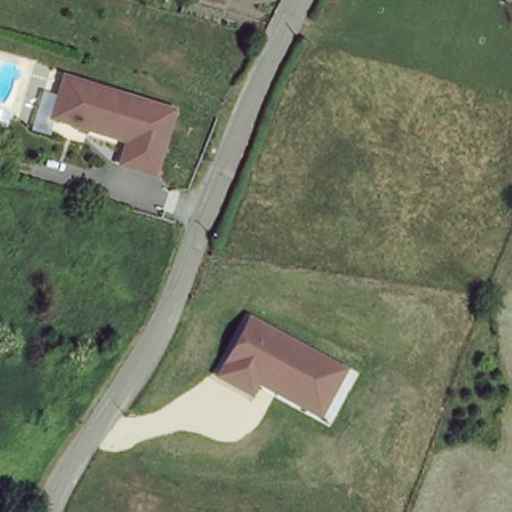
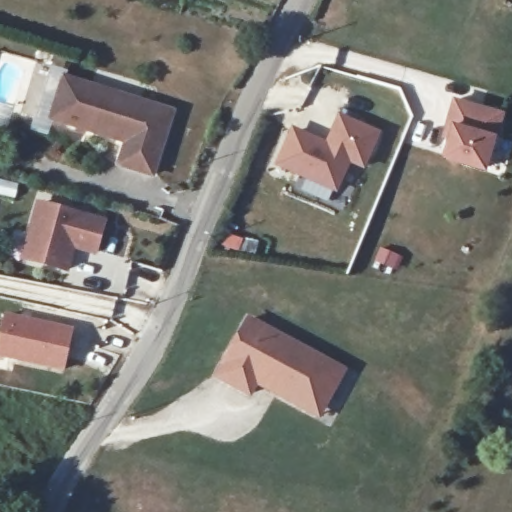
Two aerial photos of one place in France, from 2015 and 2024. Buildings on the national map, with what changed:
unchanged [(122,140),(50,117),(46,132),(32,126),(50,66),(65,72),(180,106),(159,171),(116,161),(122,140)]
new [(446,154),(452,136),(444,134),(448,122),(455,98),(503,112),(486,166),(446,154)]
new [(338,116),(376,134),(361,167),(347,160),(334,190),(276,164),(291,131),(325,147),(338,116)]
new [(35,200),(107,217),(98,255),(75,249),(68,272),(20,260),(35,200)]
unchanged [(342,361),(323,405),(260,369),(247,391),(215,372),(251,311),(342,361)]
new [(0,358),(0,331),(4,313),(73,328),(63,371),(0,358)]

